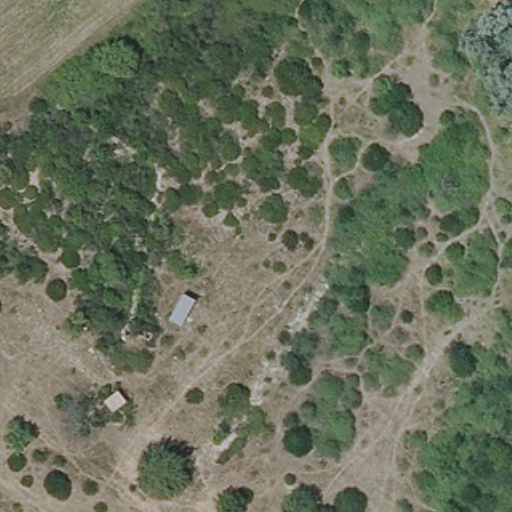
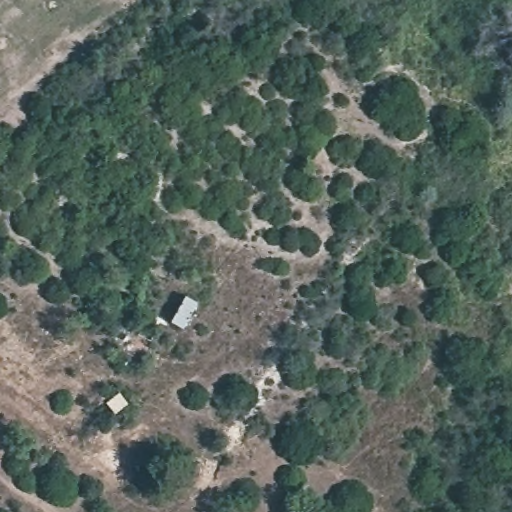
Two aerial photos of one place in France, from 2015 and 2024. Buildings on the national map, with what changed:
unchanged [(113,410),(105,400),(119,390),(127,401),(113,410)]

